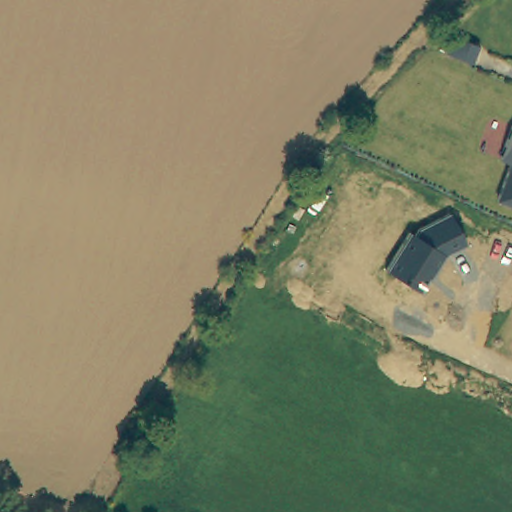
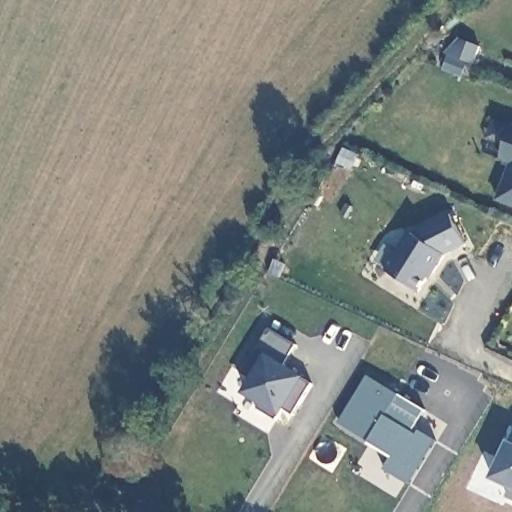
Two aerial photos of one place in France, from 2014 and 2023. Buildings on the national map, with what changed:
unchanged [(501,161),(512,131),(512,166),(501,161)]
unchanged [(499,203),(512,166),(512,208),(499,203)]
unchanged [(468,246),(446,257),(422,294),(390,273),(412,233),(416,236),(419,232),(451,213),(468,246)]
new [(285,362),(306,377),(313,383),(294,414),(288,410),(282,418),(278,416),(275,420),(255,408),(258,402),(242,392),(251,379),(241,373),(267,328),(295,347),(285,362)]
new [(415,428),(437,440),(410,485),(385,470),(393,456),(340,422),(368,376),(425,410),(415,428)]

